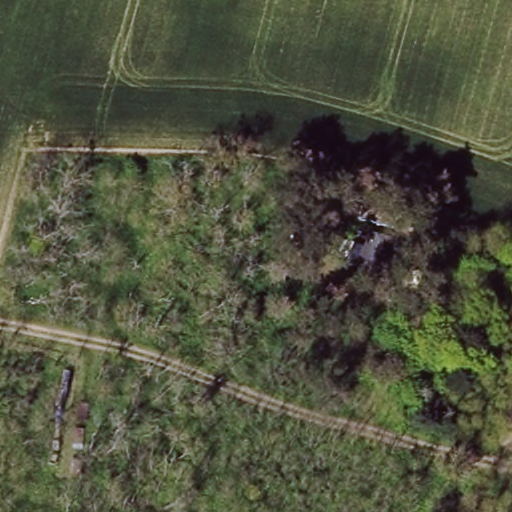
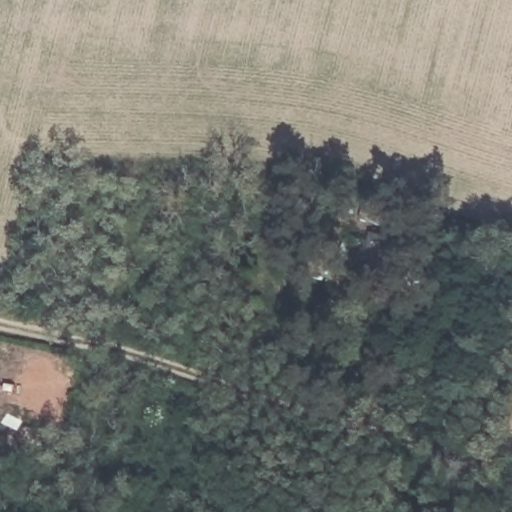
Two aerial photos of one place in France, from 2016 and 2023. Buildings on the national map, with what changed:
unchanged [(392,240),(383,271),(363,265),(372,234),(392,240)]

